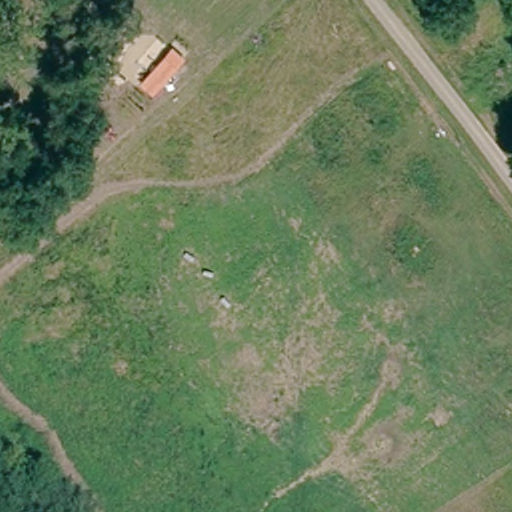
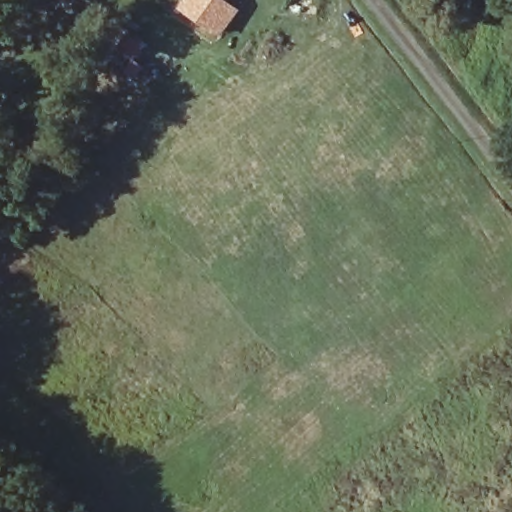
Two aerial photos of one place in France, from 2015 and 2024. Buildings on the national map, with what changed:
new [(182,9),(189,0),(223,0),(240,11),(222,39),(182,9)]

